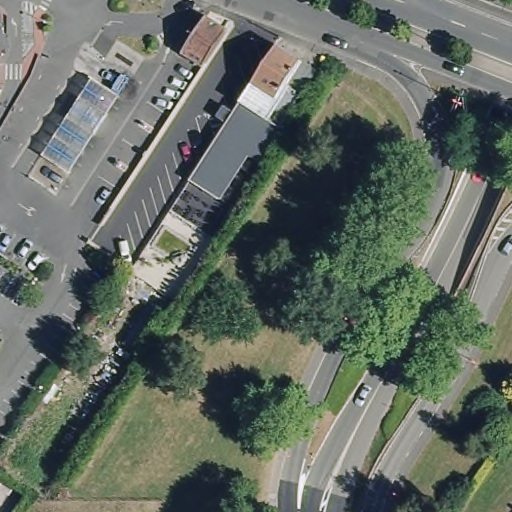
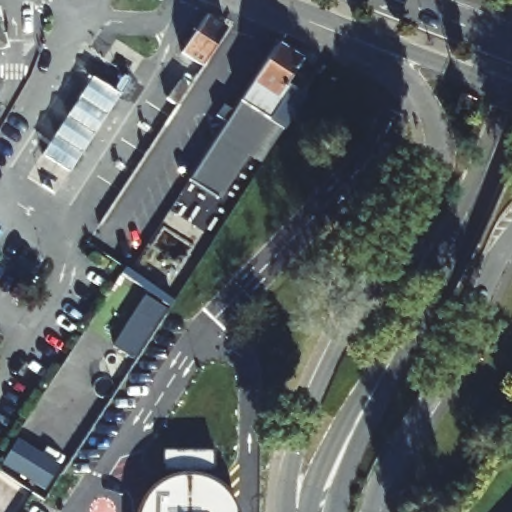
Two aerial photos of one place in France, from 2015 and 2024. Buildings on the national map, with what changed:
unchanged [(8,46),(0,48),(0,16),(8,46)]
unchanged [(198,75),(178,63),(202,26),(225,32),(198,75)]
unchanged [(257,112),(253,119),(250,116),(236,108),(241,100),(279,41),(287,46),(308,56),(304,62),(319,72),(303,96),(288,87),(282,97),(268,120),(257,112)]
unchanged [(42,155),(92,76),(117,94),(65,173),(49,161),(42,155)]
unchanged [(236,108),(250,116),(253,119),(280,132),(260,169),(247,163),(222,202),(191,185),(236,108)]
new [(167,311),(133,360),(111,345),(143,296),(167,311)]
new [(220,484),(227,491),(235,504),(238,512),(135,512),(138,504),(144,493),(155,483),(163,477),(161,451),(212,452),(211,477),(220,484)]

